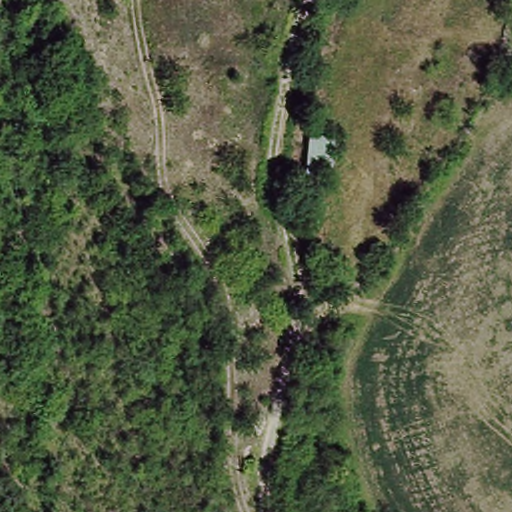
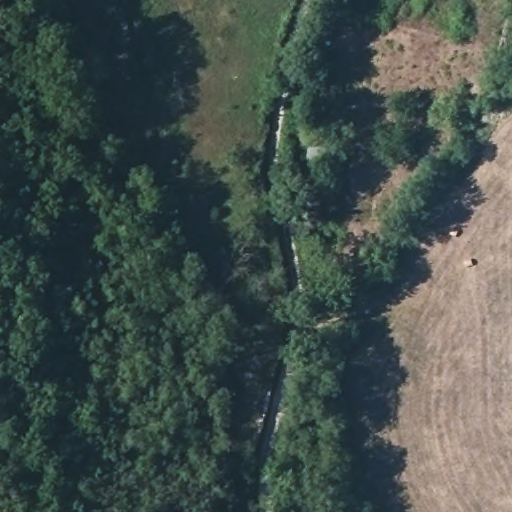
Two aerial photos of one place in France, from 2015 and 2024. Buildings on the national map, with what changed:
unchanged [(339,137),(336,171),(313,170),(315,134),(339,137)]

